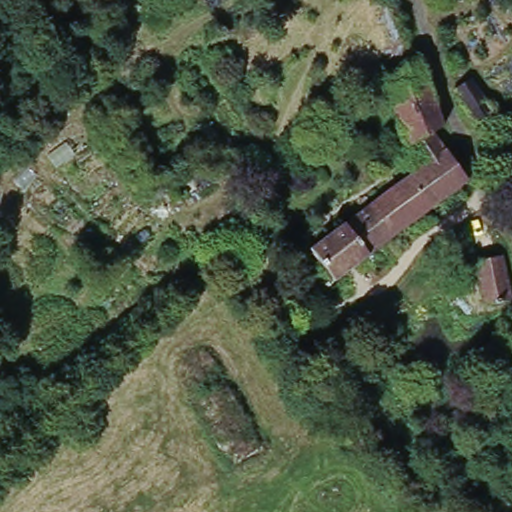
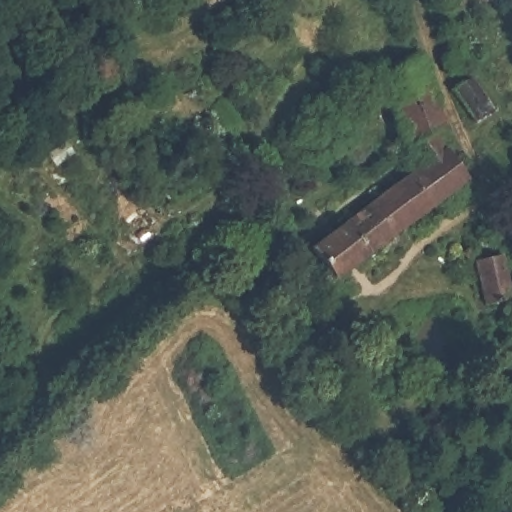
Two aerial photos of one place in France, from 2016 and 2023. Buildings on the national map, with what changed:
unchanged [(339,287),(320,258),(426,174),(406,144),(389,91),(422,70),(435,102),(446,126),(437,134),(451,154),(473,185),(474,187),(339,287)]
unchanged [(492,118),(473,126),(458,91),(477,82),(492,118)]
unchanged [(192,199),(199,211),(175,224),(169,212),(192,199)]
unchanged [(481,265),(507,260),(509,268),(512,288),(512,314),(491,317),(481,265)]

